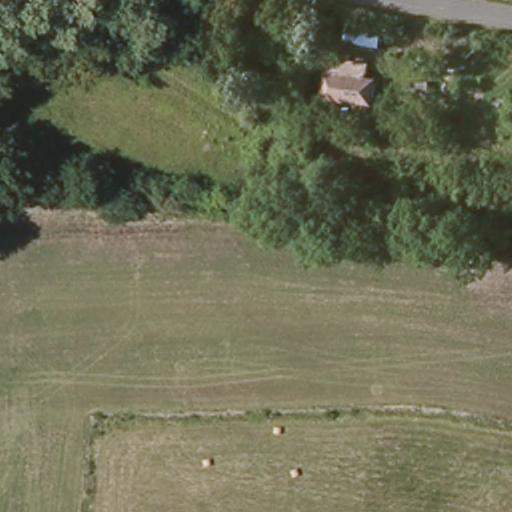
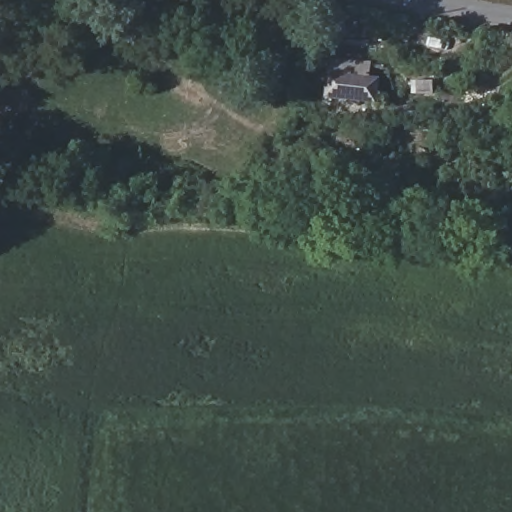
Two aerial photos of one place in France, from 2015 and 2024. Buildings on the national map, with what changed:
unchanged [(378,105),(328,98),(331,74),(333,59),(373,64),(371,79),(381,80),(378,105)]

